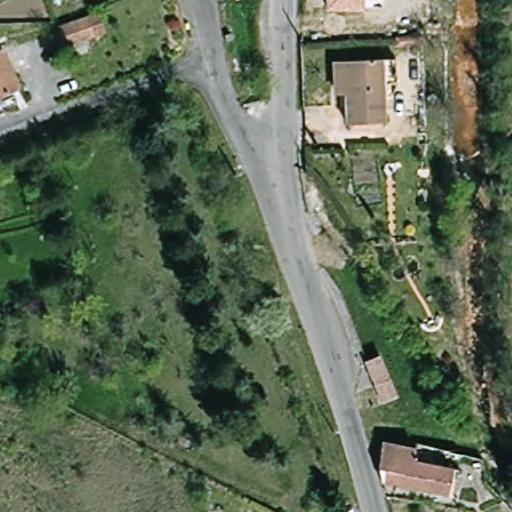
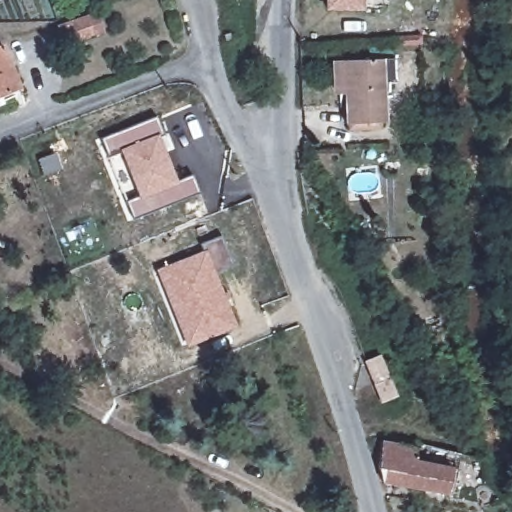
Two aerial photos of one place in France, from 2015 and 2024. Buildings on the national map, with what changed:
unchanged [(325,12),(324,0),(365,0),(365,11),(325,12)]
unchanged [(95,15),(101,12),(109,33),(103,36),(91,40),(94,47),(75,54),(73,46),(65,26),(95,15)]
unchanged [(0,51),(8,48),(25,90),(0,100),(0,51)]
unchanged [(227,72),(225,64),(236,59),(240,70),(227,72)]
unchanged [(390,122),(350,124),(349,95),(340,95),(337,62),(346,61),(388,59),(390,122)]
new [(165,137),(170,149),(163,152),(176,185),(193,177),(201,197),(133,224),(126,205),(142,199),(125,155),(109,161),(101,140),(158,117),(165,137)]
new [(160,273),(206,256),(202,246),(224,237),(235,268),(214,276),(234,329),(188,347),(183,335),(167,292),(160,273)]
unchanged [(397,392),(400,398),(385,405),(378,386),(369,362),(384,357),(397,392)]
unchanged [(389,485),(385,473),(383,466),(387,443),(422,450),(420,463),(457,470),(452,496),(389,485)]

